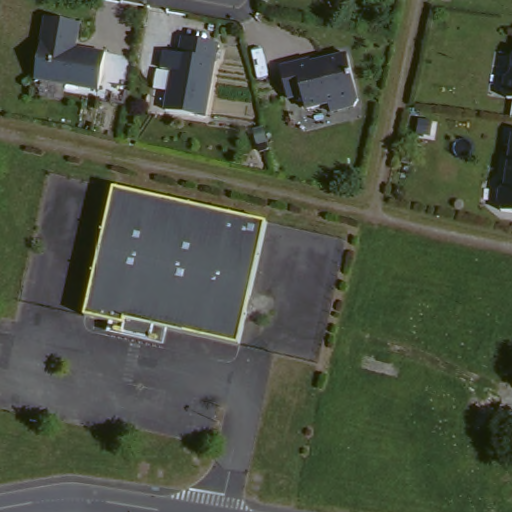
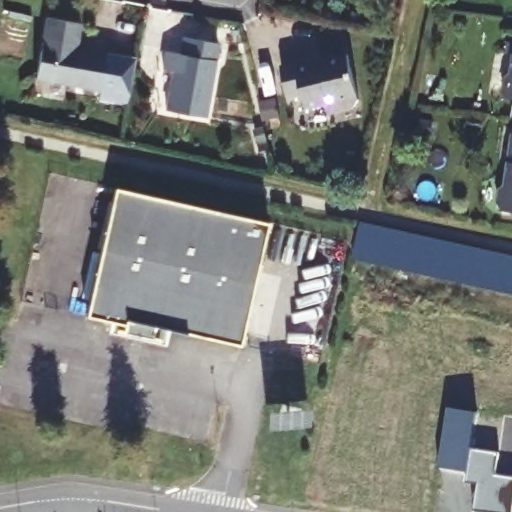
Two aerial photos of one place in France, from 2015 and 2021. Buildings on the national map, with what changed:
unchanged [(36,77),(46,15),(80,21),(75,50),(88,52),(89,47),(106,51),(99,88),(36,77)]
unchanged [(213,117),(173,110),(180,70),(171,67),(174,50),(188,53),(191,36),(226,42),(213,117)]
unchanged [(334,111),(331,102),(308,107),(305,94),(291,97),(283,65),(312,58),(313,65),(324,62),(323,59),(349,52),(361,99),(357,105),(334,111)]
unchanged [(510,74),(512,72),(512,92),(508,87),(510,74)]
unchanged [(509,198),(505,193),(506,180),(512,176),(512,200),(509,200),(509,198)]
unchanged [(271,223),(241,347),(155,325),(152,338),(125,332),(127,323),(87,313),(119,184),(271,223)]
new [(512,264),(512,302),(361,263),(370,227),(512,264)]
new [(500,457),(496,478),(512,480),(512,512),(474,512),(478,487),(466,486),(472,452),(500,457)]

